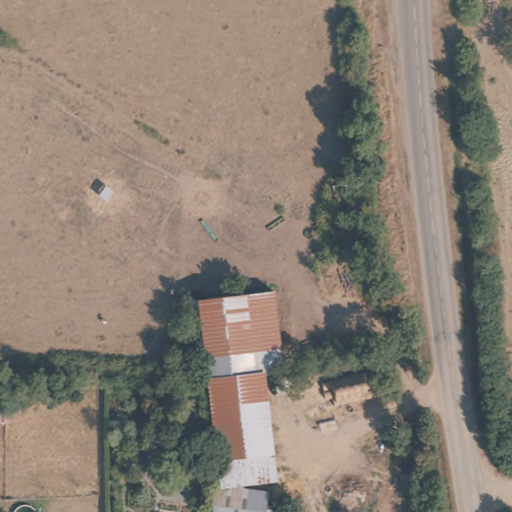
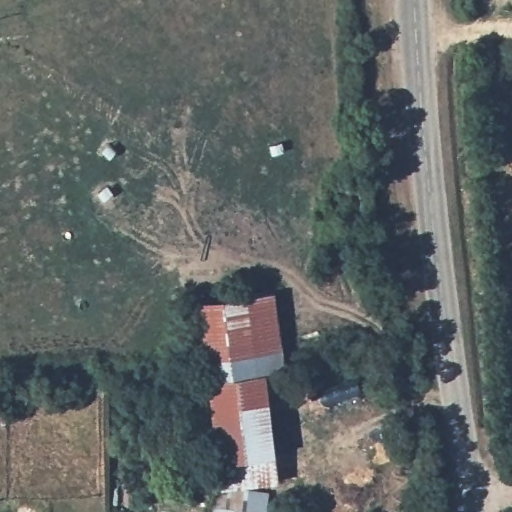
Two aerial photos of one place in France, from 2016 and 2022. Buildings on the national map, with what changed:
unchanged [(282,299),(285,352),(209,357),(206,302),(282,299)]
unchanged [(269,483),(214,487),(208,395),(210,382),(265,379),(265,388),(269,483)]
unchanged [(263,497),(262,512),(203,512),(205,491),(263,497)]

